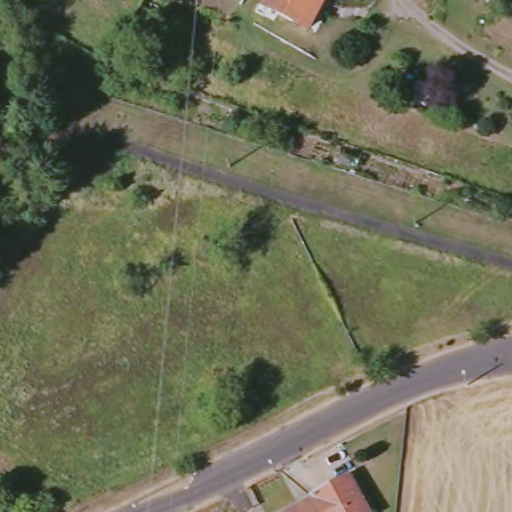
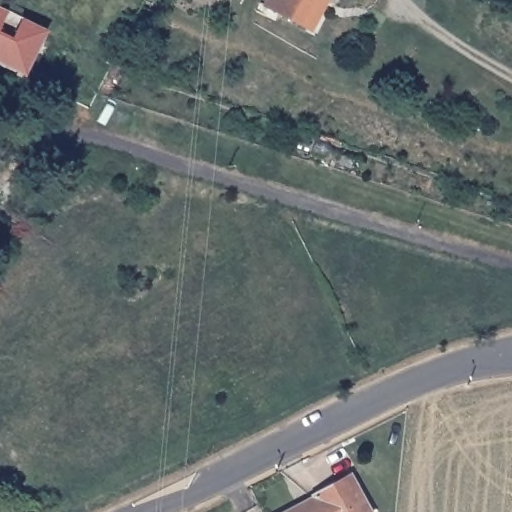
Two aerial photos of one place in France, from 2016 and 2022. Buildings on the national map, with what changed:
unchanged [(307,27),(270,12),(275,0),(320,0),(307,27)]
unchanged [(327,2),(322,0),(328,0),(327,2)]
new [(25,47),(14,72),(0,65),(0,8),(45,29),(34,51),(25,47)]
unchanged [(354,482),(369,512),(292,512),(320,498),(354,482)]

